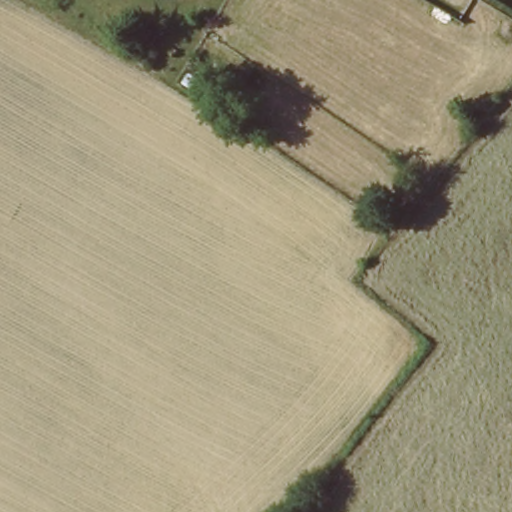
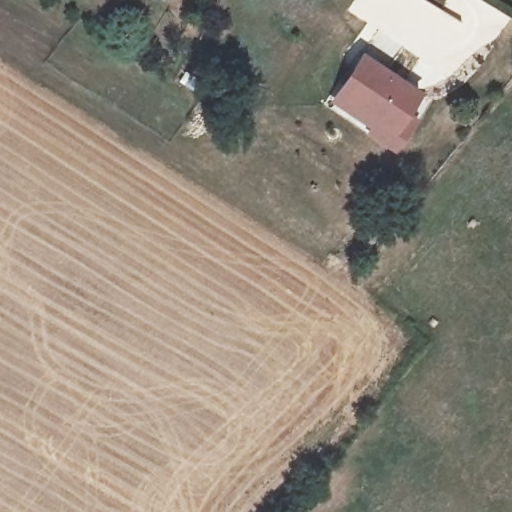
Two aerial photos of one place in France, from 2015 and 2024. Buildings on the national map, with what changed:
new [(424,94),(410,116),(420,122),(397,155),(368,136),(370,130),(330,103),(361,55),(424,94)]

